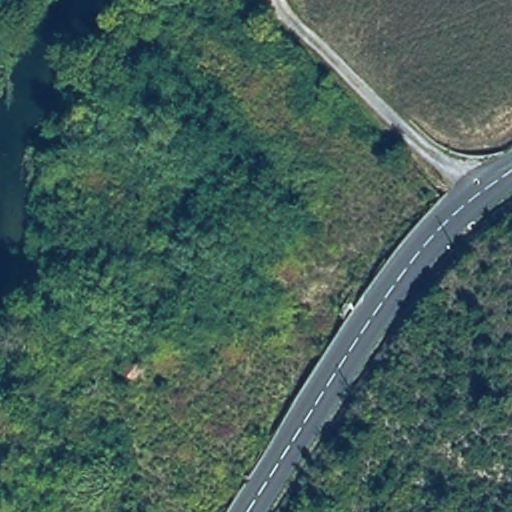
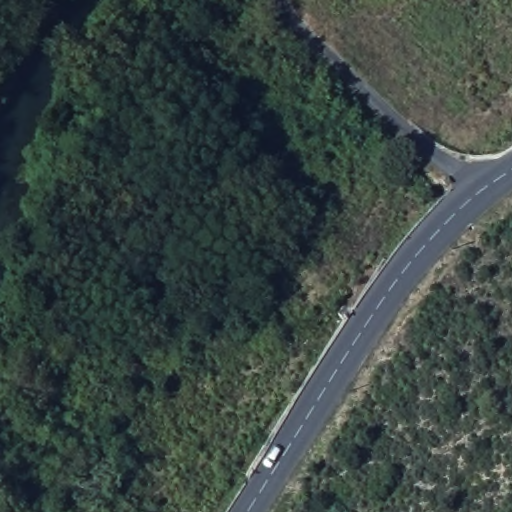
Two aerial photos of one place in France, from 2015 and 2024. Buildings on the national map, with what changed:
unchanged [(129,353),(147,367),(141,380),(117,368),(129,353)]

